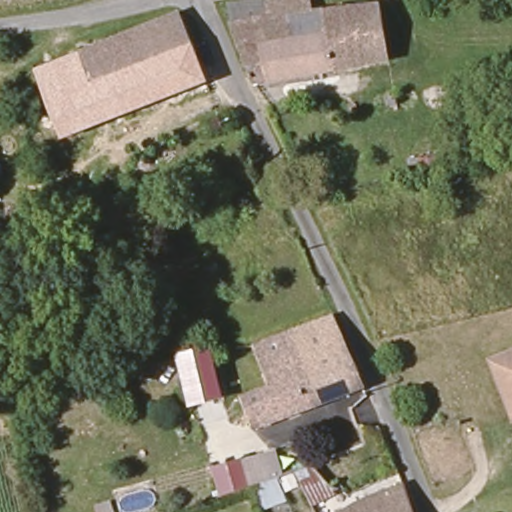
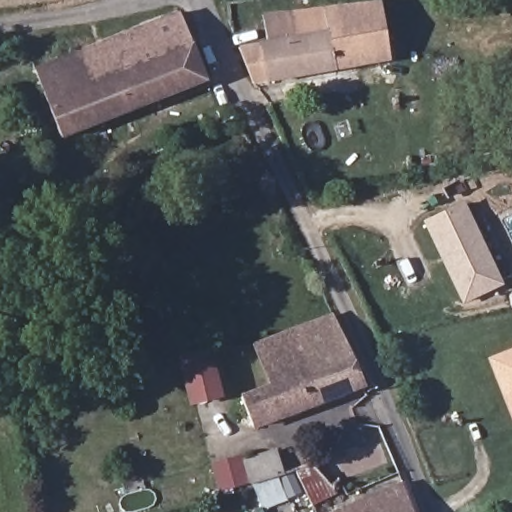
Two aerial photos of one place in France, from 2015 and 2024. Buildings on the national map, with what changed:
unchanged [(267,40),(264,15),(321,9),(378,3),(387,54),(258,83),(246,46),(267,40)]
unchanged [(181,12),(209,82),(62,136),(36,66),(181,12)]
demolished [(425,170),(423,159),(447,154),(450,166),(425,170)]
demolished [(83,166),(92,164),(96,175),(109,172),(110,177),(122,175),(127,189),(94,196),(83,166)]
new [(463,203),(502,283),(462,303),(423,221),(463,203)]
unchanged [(252,421),(243,393),(268,386),(254,340),(338,312),(370,388),(252,421)]
unchanged [(209,343),(222,391),(195,396),(182,350),(209,343)]
unchanged [(512,349),(512,407),(492,356),(512,349)]
unchanged [(276,449),(285,469),(311,460),(338,491),(309,505),(302,488),(286,492),(288,500),(261,508),(249,486),(232,490),(224,462),(242,457),(276,449)]
unchanged [(405,488),(413,512),(374,512),(370,503),(405,488)]
unchanged [(374,512),(347,512),(370,503),(374,512)]

